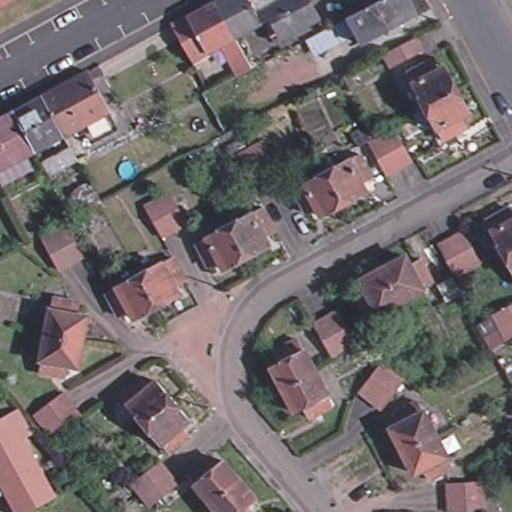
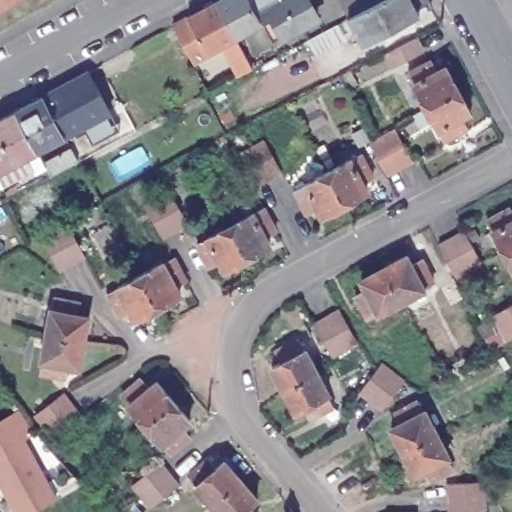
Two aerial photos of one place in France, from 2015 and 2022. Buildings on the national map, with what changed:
unchanged [(0,6),(0,0),(11,0),(0,6)]
unchanged [(227,46),(212,55),(195,64),(175,27),(192,19),(219,5),(227,0),(286,0),(288,3),(294,0),(312,0),(322,19),(297,32),(290,36),(277,43),(265,25),(238,40),(255,71),(243,77),(227,46)]
unchanged [(342,19),(348,15),(377,0),(411,0),(418,13),(362,42),(352,22),(345,25),(342,19)]
unchanged [(387,51),(418,35),(424,49),(395,64),(387,51)]
unchanged [(426,59),(432,70),(441,65),(453,87),(421,104),(410,82),(411,81),(405,70),(426,59)]
unchanged [(40,164),(35,153),(0,172),(0,118),(13,110),(41,96),(85,72),(107,115),(62,138),(68,148),(40,164)]
unchanged [(453,87),(465,110),(456,114),(462,125),(441,136),(435,125),(433,126),(421,104),(453,87)]
unchanged [(372,140),(397,127),(413,159),(388,171),(372,140)]
unchanged [(240,153),(265,139),(283,170),(257,184),(240,153)]
unchanged [(334,167),(336,170),(347,164),(358,185),(347,191),(351,200),(330,211),(312,180),(334,167)]
unchanged [(290,194),(290,191),(312,180),(330,211),(307,223),(302,215),(292,221),(280,199),(290,194)]
unchanged [(146,202),(172,189),(187,221),(162,235),(146,202)]
unchanged [(512,209),(512,246),(504,250),(492,229),(495,227),(488,216),(510,205),(512,209)]
unchanged [(240,220),(242,222),(253,216),(265,237),(254,244),(258,252),(236,264),(218,232),(240,220)]
unchanged [(40,235),(65,222),(82,253),(58,266),(40,235)]
unchanged [(440,241),(465,228),(483,259),(458,273),(440,241)]
unchanged [(198,246),(197,244),(218,232),(236,264),(215,275),(210,267),(198,273),(187,252),(198,246)]
unchanged [(512,265),(504,250),(512,246),(512,265)]
unchanged [(407,254),(412,261),(422,256),(432,277),(422,283),(424,287),(402,298),(384,265),(407,254)]
unchanged [(160,258),(160,260),(172,255),(183,276),(173,282),(177,291),(155,303),(137,270),(160,258)]
unchanged [(402,298),(380,310),(377,306),(366,312),(355,291),(366,285),(363,276),(384,265),(402,298)]
unchanged [(115,285),(113,282),(137,270),(155,303),(132,315),(127,306),(117,311),(105,290),(115,285)]
unchanged [(49,306),(51,307),(53,295),(77,300),(75,311),(85,312),(80,337),(44,331),(49,306)]
unchanged [(512,332),(505,335),(492,310),(512,299),(512,332)]
unchanged [(313,322),(339,306),(357,337),(332,352),(313,322)]
unchanged [(80,337),(76,363),(66,362),(62,372),(38,369),(41,356),(38,355),(44,331),(80,337)]
unchanged [(275,373),(285,368),(280,357),(302,345),(308,356),(310,355),(322,377),(287,395),(275,373)]
unchanged [(381,361),(403,380),(381,406),(359,387),(381,361)]
unchanged [(125,397),(127,395),(118,385),(137,369),(146,378),(153,371),(170,390),(140,416),(125,397)]
unchanged [(322,377),(333,400),(330,401),(337,413),(315,424),(310,413),(299,418),(287,395),(322,377)]
unchanged [(160,433),(157,435),(140,416),(170,390),(186,410),(178,416),(187,426),(168,441),(160,433)]
unchanged [(34,413),(60,391),(78,412),(50,435),(34,413)]
unchanged [(390,424),(398,420),(393,408),(414,397),(420,408),(422,407),(433,429),(402,446),(390,424)]
unchanged [(433,429),(445,451),(443,453),(448,463),(428,475),(422,463),(413,468),(402,446),(433,429)]
unchanged [(22,437),(53,495),(21,512),(14,512),(0,486),(0,450),(22,437)]
unchanged [(130,480),(157,458),(176,481),(149,502),(130,480)]
unchanged [(197,486),(200,484),(192,475),(210,458),(218,468),(227,461),(242,480),(213,505),(197,486)]
unchanged [(447,481),(483,478),(485,506),(450,510),(447,481)]
unchanged [(242,480),(260,499),(252,507),(255,512),(220,512),(213,505),(242,480)]

